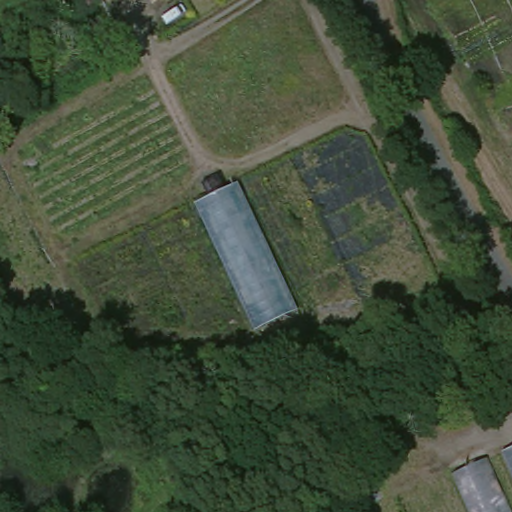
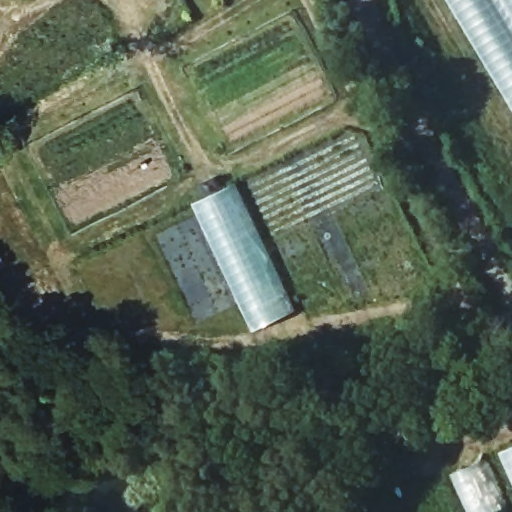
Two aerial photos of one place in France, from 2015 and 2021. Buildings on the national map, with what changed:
new [(450,0),(512,0),(512,104),(450,0)]
unchanged [(299,306),(256,326),(194,200),(240,177),(299,306)]
unchanged [(476,512),(456,468),(512,445),(512,512),(476,512)]

